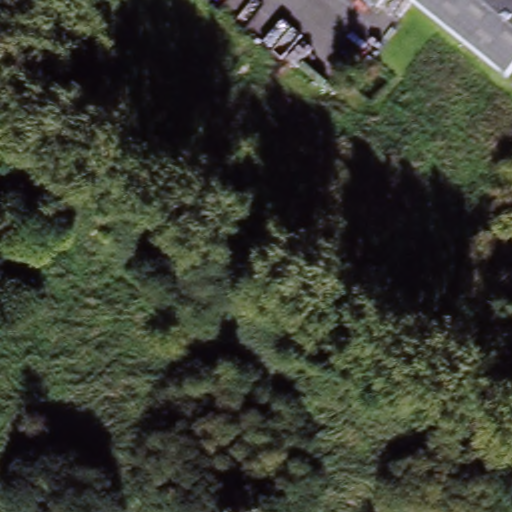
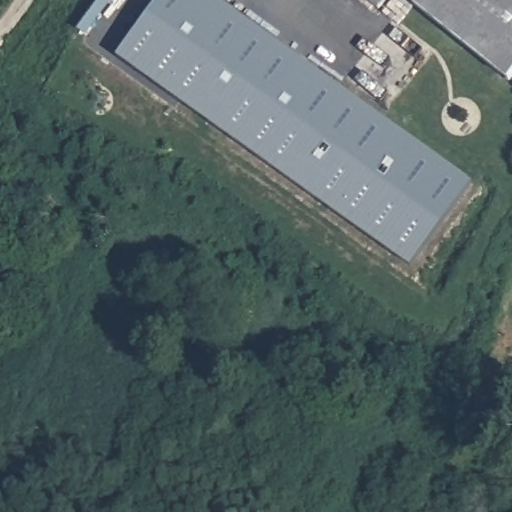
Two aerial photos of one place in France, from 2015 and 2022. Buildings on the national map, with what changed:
new [(161,0),(217,0),(470,181),(410,266),(120,59),(161,0)]
unchanged [(372,0),(382,0),(378,5),(372,0)]
unchanged [(512,75),(493,99),(378,5),(382,0),(512,0),(512,75)]

